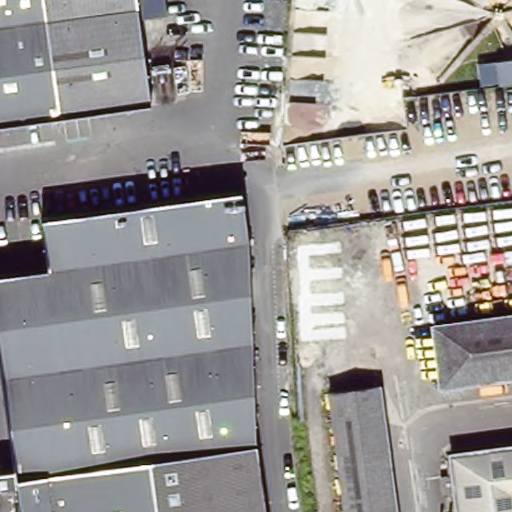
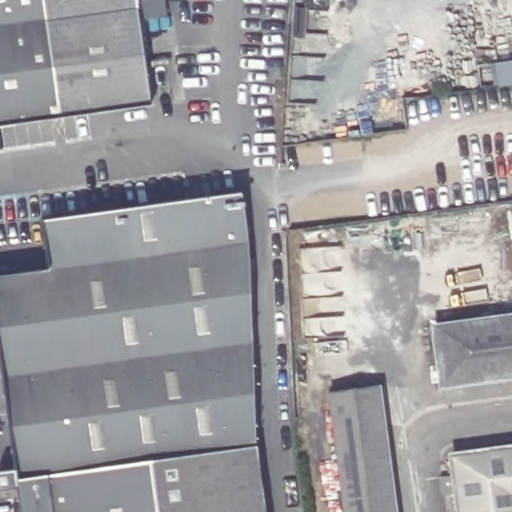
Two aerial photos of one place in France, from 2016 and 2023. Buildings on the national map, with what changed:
unchanged [(137,40),(82,114),(0,126),(0,0),(132,0),(137,40)]
unchanged [(137,40),(146,105),(82,114),(137,40)]
unchanged [(499,87),(476,90),(473,66),(496,62),(512,59),(512,85),(499,87)]
unchanged [(245,257),(250,443),(261,512),(18,512),(0,385),(0,278),(44,273),(37,222),(236,194),(245,257)]
unchanged [(512,318),(512,380),(426,392),(418,331),(512,318)]
unchanged [(330,394),(378,387),(380,404),(396,512),(347,512),(333,411),(330,394)]
unchanged [(462,512),(455,459),(512,451),(512,512),(462,512)]

